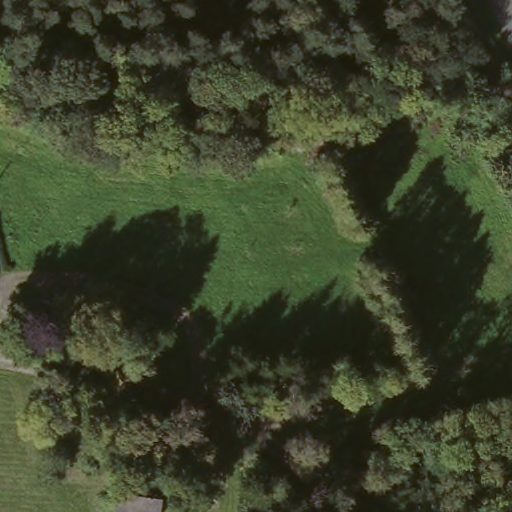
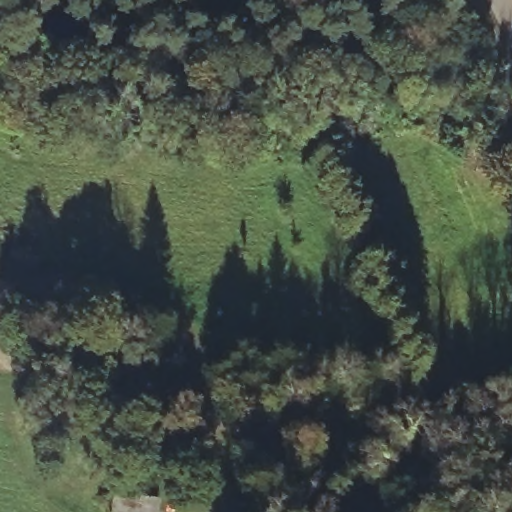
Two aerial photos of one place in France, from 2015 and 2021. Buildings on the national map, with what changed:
[]

